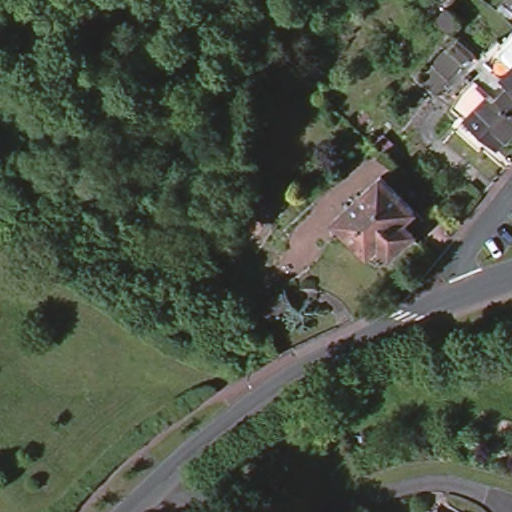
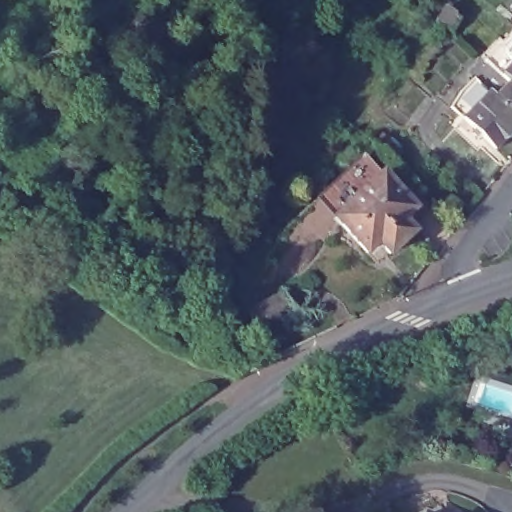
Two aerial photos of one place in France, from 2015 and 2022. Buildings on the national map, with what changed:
unchanged [(443,7),(460,17),(452,30),(435,20),(443,7)]
unchanged [(483,56),(512,26),(512,81),(507,77),(483,56)]
unchanged [(458,87),(472,73),(493,92),(507,77),(512,81),(512,126),(495,145),(448,102),(458,87)]
unchanged [(410,227),(412,229),(388,251),(377,238),(365,250),(332,217),(378,172),(412,205),(422,216),(410,227)]
unchanged [(279,291),(288,308),(255,324),(247,307),(279,291)]

